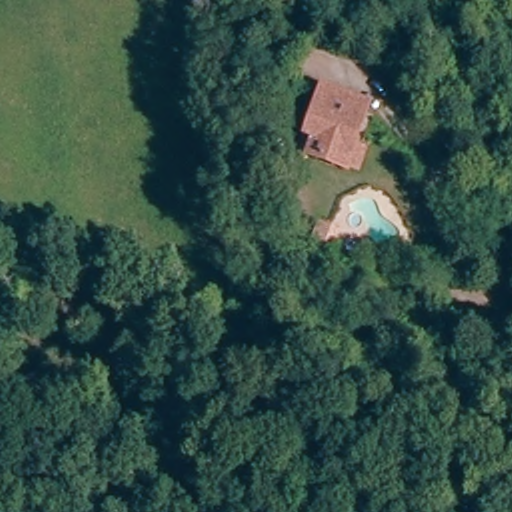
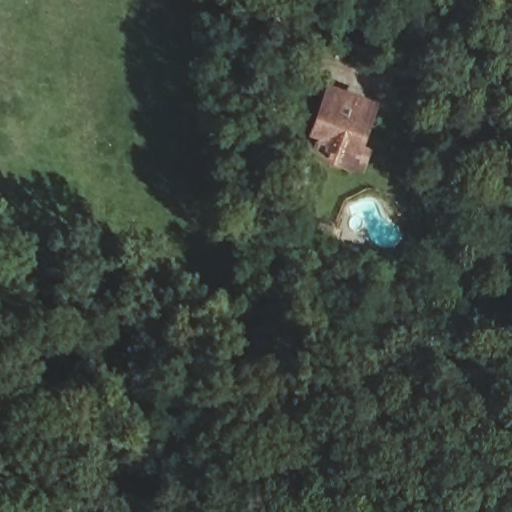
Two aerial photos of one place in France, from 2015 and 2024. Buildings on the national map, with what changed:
unchanged [(364,166),(353,165),(322,157),(306,153),(310,137),(320,103),(366,114),(358,147),(368,148),(364,166)]

